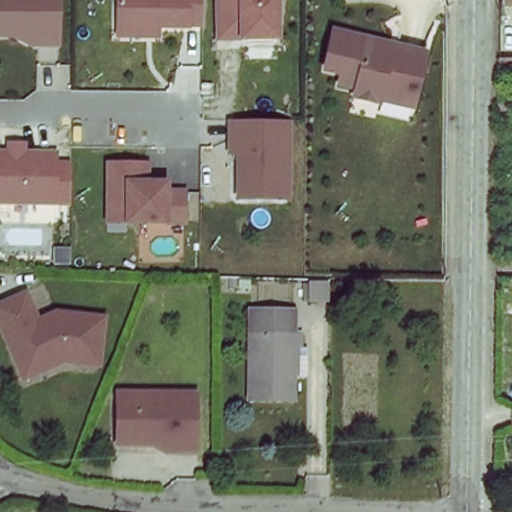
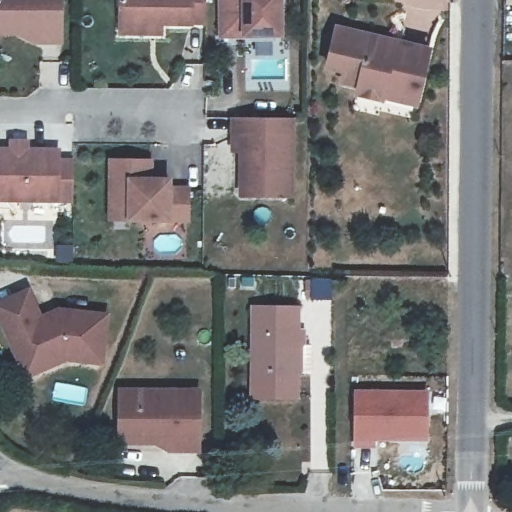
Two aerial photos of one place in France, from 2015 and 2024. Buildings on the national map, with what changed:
unchanged [(40,40),(40,26),(0,25),(0,0),(57,0),(55,40),(40,40)]
unchanged [(117,24),(118,0),(201,0),(201,24),(187,24),(187,26),(158,25),(157,39),(116,38),(117,24)]
unchanged [(222,0),(282,0),(282,38),(245,38),(222,39),(222,30),(222,0)]
unchanged [(418,96),(386,88),(382,101),(356,94),(361,79),(344,74),(345,70),(328,66),(338,29),(430,53),(418,96)]
unchanged [(295,202),(238,201),(238,153),(228,153),(228,119),(295,120),(295,202)]
unchanged [(70,204),(0,201),(0,151),(72,154),(70,204)]
unchanged [(151,159),(150,188),(188,188),(187,219),(110,218),(111,159),(151,159)]
unchanged [(0,292),(28,284),(36,313),(50,309),(98,315),(90,362),(55,356),(26,364),(15,368),(8,346),(0,315),(0,292)]
unchanged [(249,328),(249,306),(307,306),(309,328),(249,328)]
unchanged [(301,404),(248,406),(249,328),(309,328),(301,404)]
new [(353,389),(430,389),(430,441),(376,442),(376,448),(352,448),(353,389)]
unchanged [(163,439),(113,438),(115,394),(193,396),(192,454),(173,454),(163,453),(163,439)]

